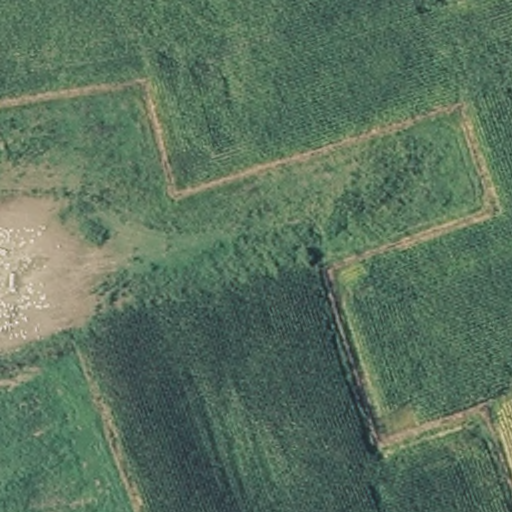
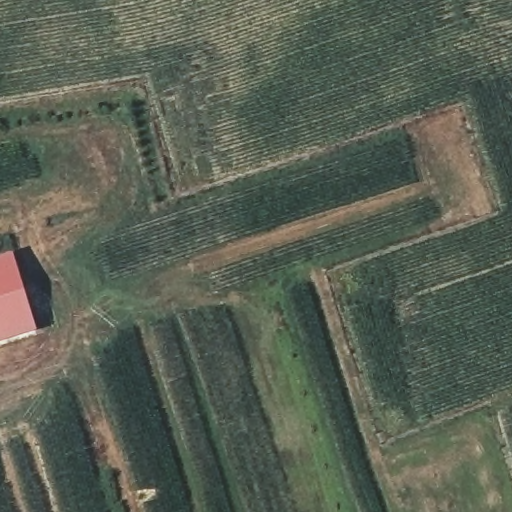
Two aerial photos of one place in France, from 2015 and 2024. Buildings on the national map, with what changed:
new [(14,254),(37,329),(0,340),(0,258),(14,254)]

